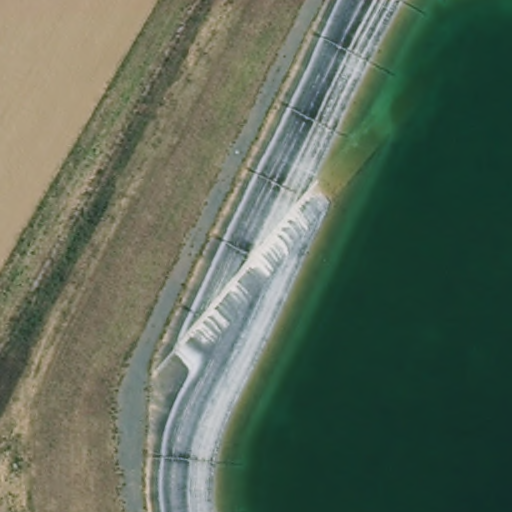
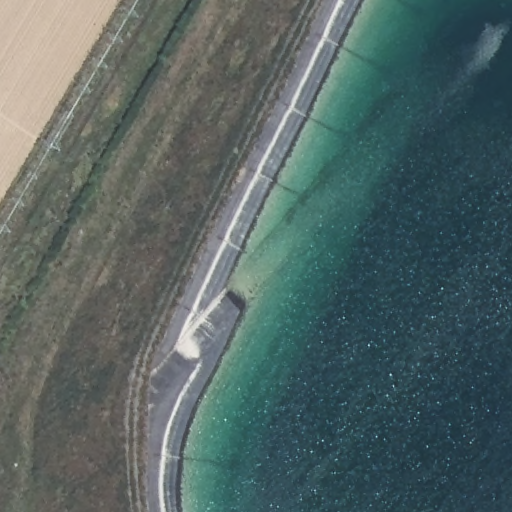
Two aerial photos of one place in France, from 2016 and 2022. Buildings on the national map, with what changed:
[]

